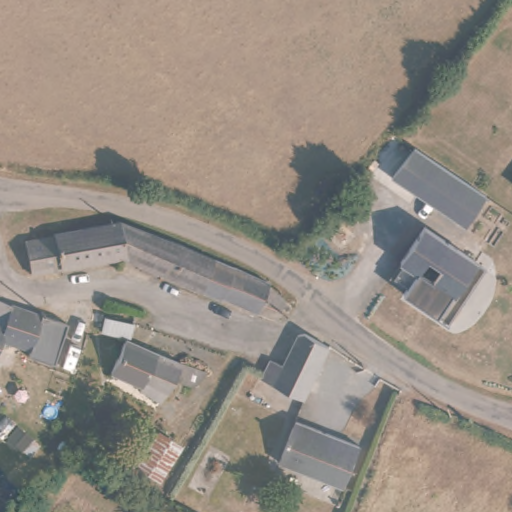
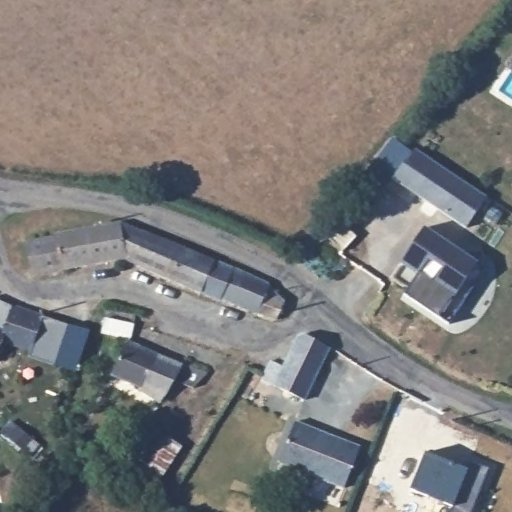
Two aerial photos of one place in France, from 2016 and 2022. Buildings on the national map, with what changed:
unchanged [(389,179),(412,149),(484,196),(484,197),(464,227),(389,179)]
unchanged [(24,241),(116,220),(120,261),(31,277),(24,241)]
unchanged [(183,248),(170,278),(125,260),(120,261),(116,220),(117,220),(183,248)]
unchanged [(396,265),(394,263),(418,227),(479,268),(442,325),(397,295),(402,288),(387,279),(396,265)]
unchanged [(214,261),(200,291),(170,278),(183,248),(214,261)]
unchanged [(268,283),(257,313),(219,297),(217,302),(199,294),(200,291),(214,261),(268,283)]
unchanged [(34,350),(4,341),(0,350),(0,325),(7,328),(13,307),(14,304),(45,313),(38,336),(34,350)]
unchanged [(147,342),(136,340),(129,339),(106,335),(109,322),(139,327),(149,330),(147,342)]
unchanged [(264,368),(269,362),(280,367),(298,336),(324,352),(298,403),(292,399),(258,380),(260,376),(264,368)]
unchanged [(209,375),(194,388),(178,382),(165,405),(140,392),(143,387),(113,375),(129,342),(209,375)]
unchanged [(355,452),(339,491),(284,467),(274,463),(290,425),(304,430),(355,452)]
unchanged [(134,467),(158,429),(182,443),(158,486),(134,467)]
new [(453,506),(409,488),(426,451),(468,467),(471,461),(488,468),(470,512),(449,512),(453,506)]

